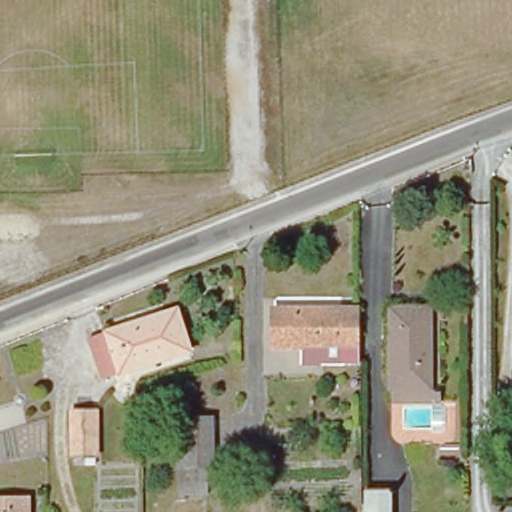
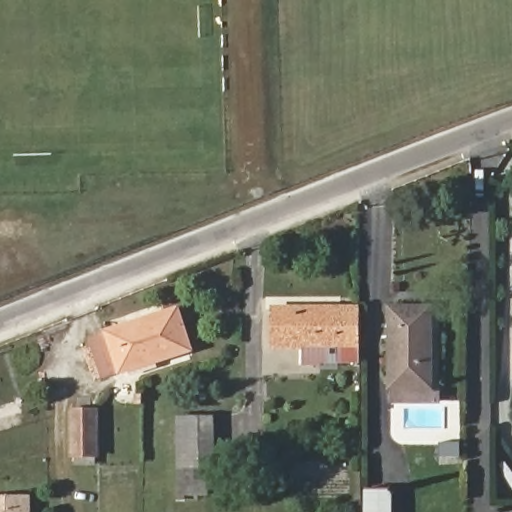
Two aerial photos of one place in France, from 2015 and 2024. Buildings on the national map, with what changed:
unchanged [(304,337),(275,337),(275,300),(361,300),(361,353),(340,352),(305,351),(304,337)]
unchanged [(195,347),(110,371),(97,328),(184,303),(195,347)]
unchanged [(397,307),(434,307),(433,386),(396,386),(397,307)]
unchanged [(96,450),(72,450),(71,405),(96,405),(96,450)]
unchanged [(216,407),(214,467),(206,467),(206,493),(177,493),(174,410),(216,407)]
unchanged [(398,485),(400,512),(365,512),(362,489),(398,485)]
unchanged [(25,487),(25,512),(0,512),(0,486),(25,487)]

